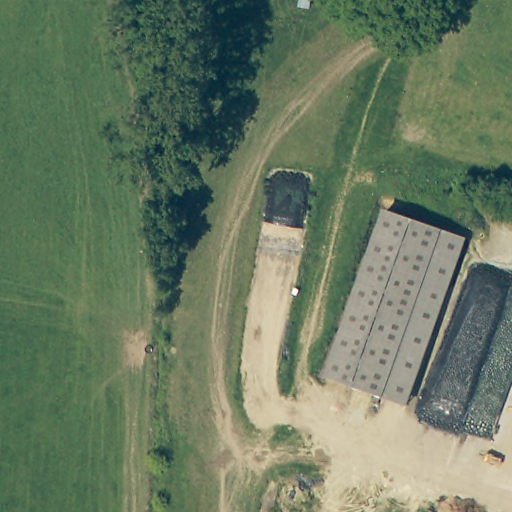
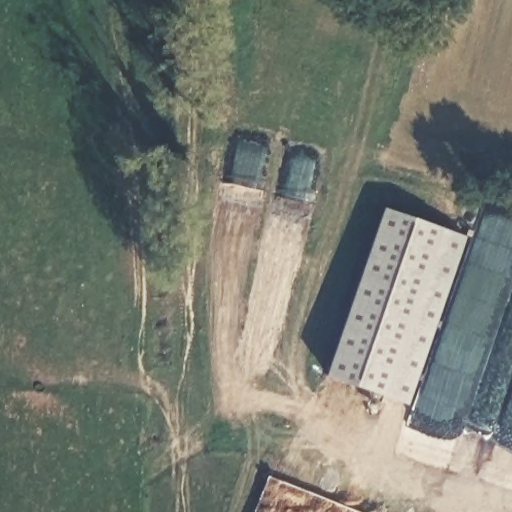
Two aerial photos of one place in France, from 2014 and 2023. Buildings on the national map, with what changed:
unchanged [(376,204),(458,229),(406,400),(324,375),(376,204)]

